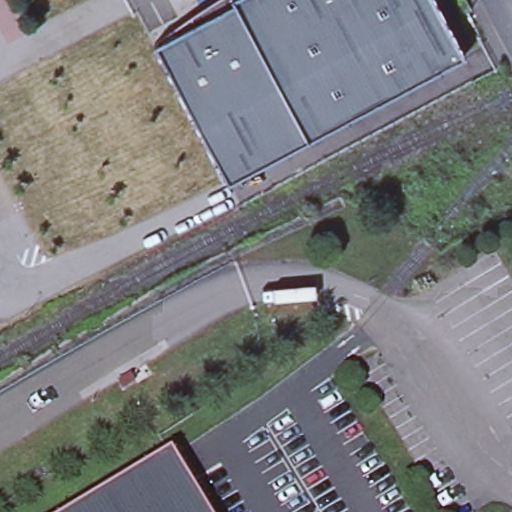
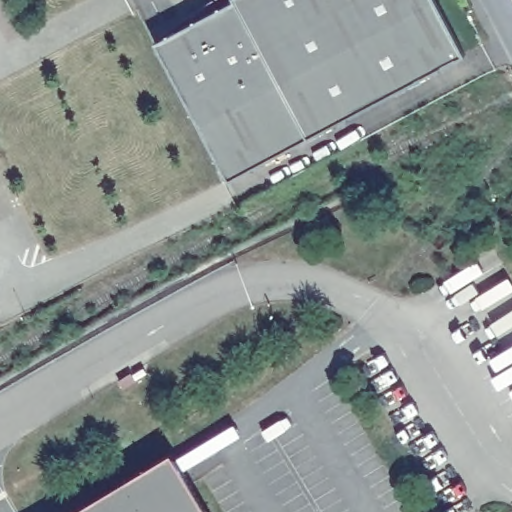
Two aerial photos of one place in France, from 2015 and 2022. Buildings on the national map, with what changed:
unchanged [(152,37),(222,0),(437,0),(463,50),(226,176),(221,167),(152,37)]
unchanged [(207,512),(66,512),(169,449),(207,512)]

